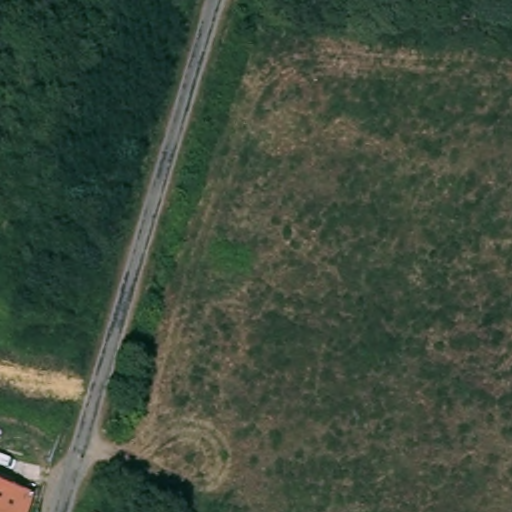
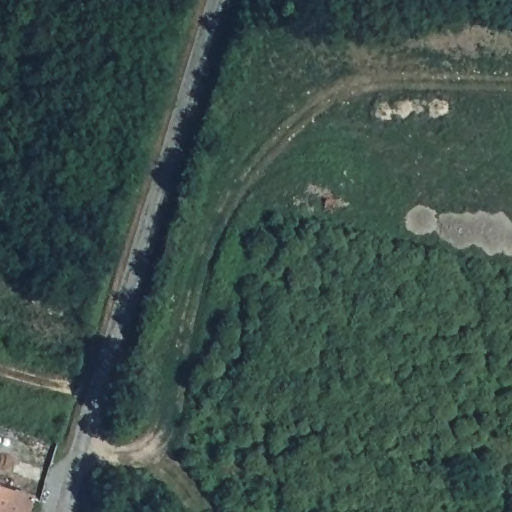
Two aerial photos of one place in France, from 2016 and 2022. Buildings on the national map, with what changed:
unchanged [(31,512),(0,512),(0,487),(35,499),(31,512)]

